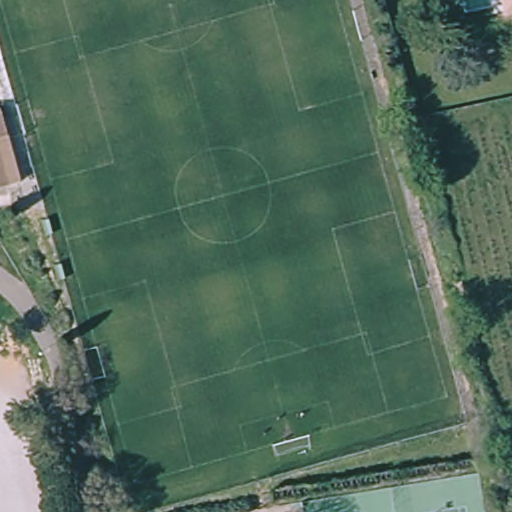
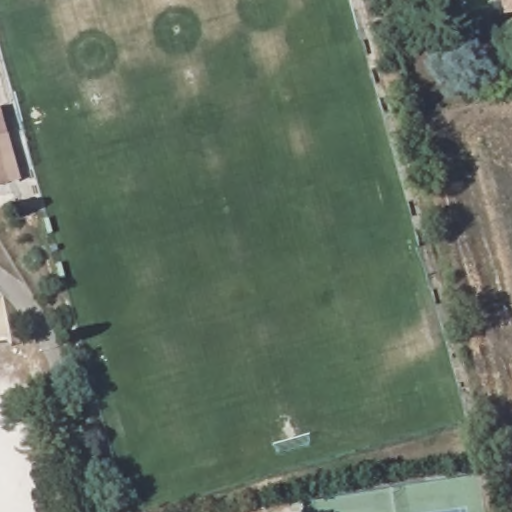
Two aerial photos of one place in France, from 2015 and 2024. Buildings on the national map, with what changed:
unchanged [(502,11),(499,0),(512,0),(512,9),(502,11)]
unchanged [(0,140),(0,111),(2,111),(9,137),(0,140)]
unchanged [(0,190),(0,154),(9,188),(0,190)]

